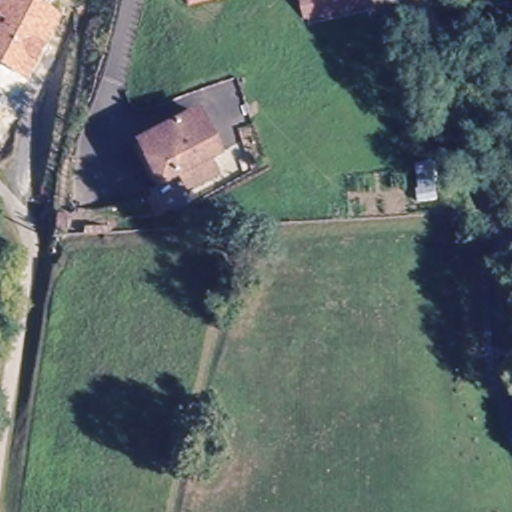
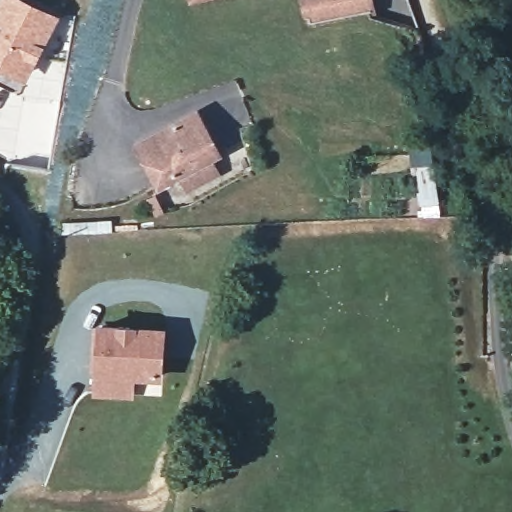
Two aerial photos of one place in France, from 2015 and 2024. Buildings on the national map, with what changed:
unchanged [(25,84),(0,71),(0,0),(30,0),(60,16),(25,84)]
unchanged [(188,0),(217,0),(189,6),(188,0)]
unchanged [(364,0),(366,16),(309,25),(306,0),(364,0)]
unchanged [(196,181),(189,168),(161,182),(139,140),(198,111),(219,154),(225,167),(196,181)]
new [(420,209),(410,144),(432,142),(437,208),(420,209)]
unchanged [(55,236),(57,216),(70,214),(69,238),(55,236)]
new [(95,323),(166,326),(162,379),(136,378),(134,398),(92,396),(95,323)]

